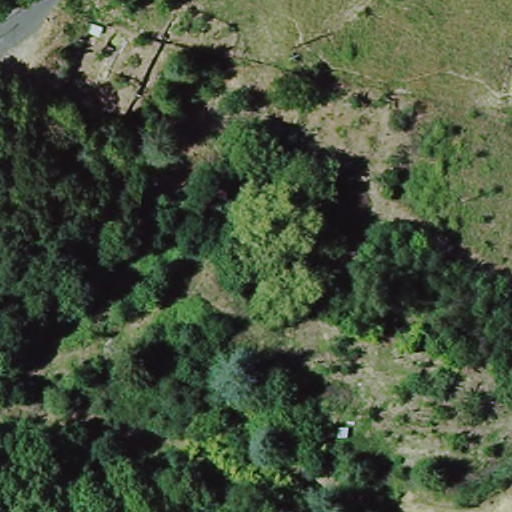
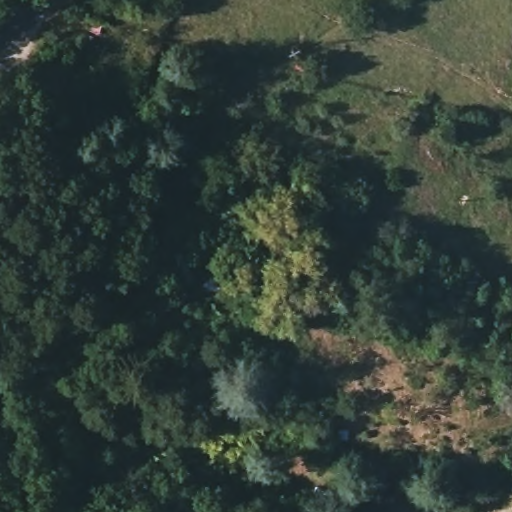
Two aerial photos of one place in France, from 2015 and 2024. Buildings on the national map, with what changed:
[]

